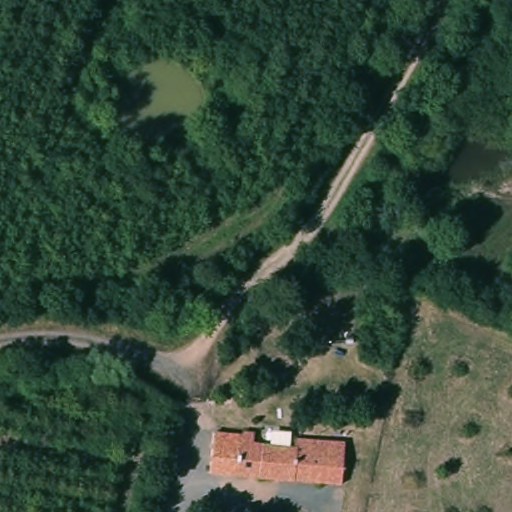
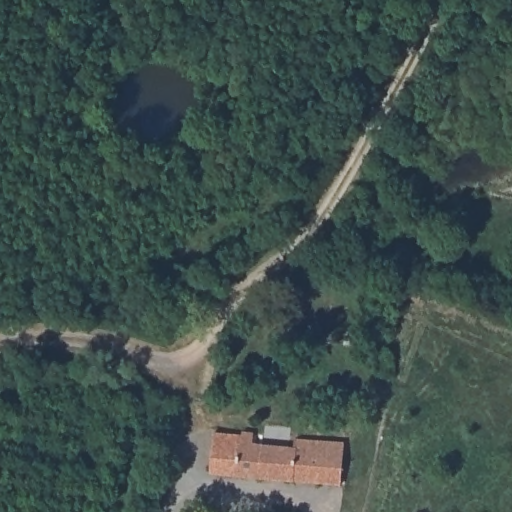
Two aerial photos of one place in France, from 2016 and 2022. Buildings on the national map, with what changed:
unchanged [(247,431),(245,445),(293,448),(294,438),(340,441),(338,483),(219,475),(223,429),(247,431)]

